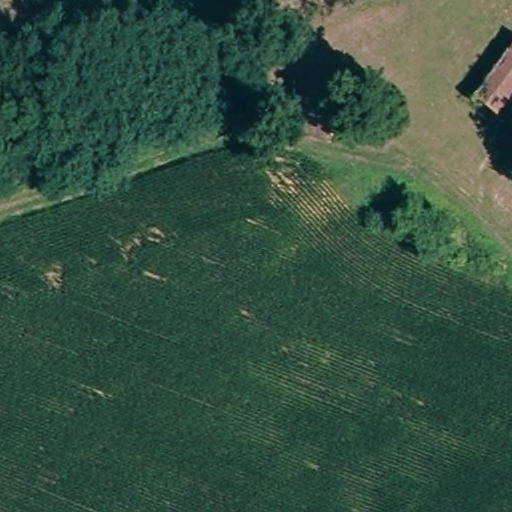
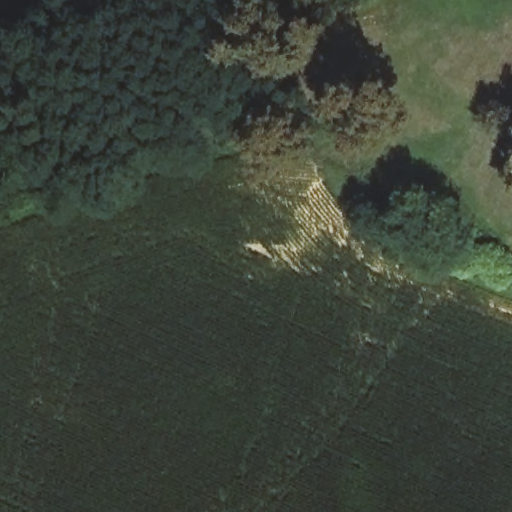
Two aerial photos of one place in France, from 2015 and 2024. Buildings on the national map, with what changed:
demolished [(506,114),(469,99),(512,41),(512,107),(506,114)]

